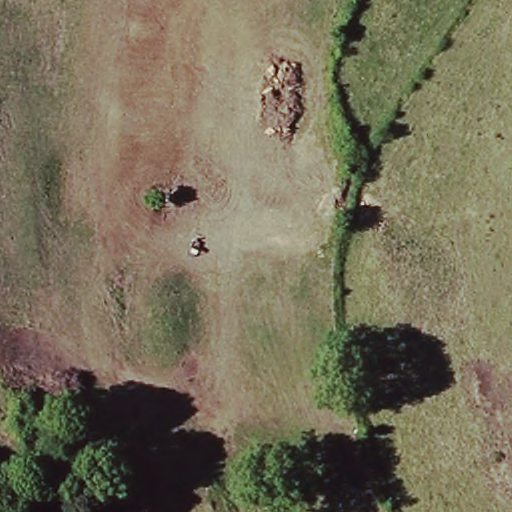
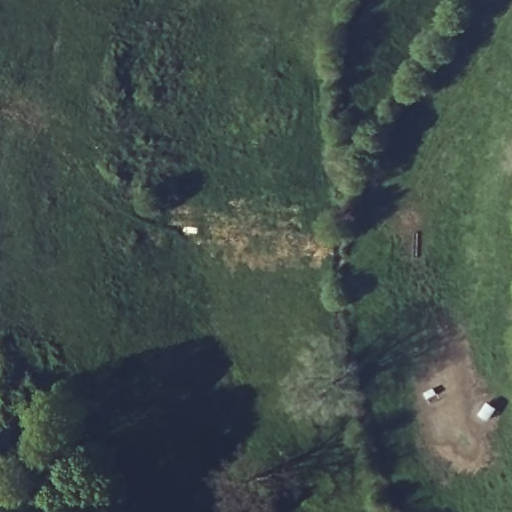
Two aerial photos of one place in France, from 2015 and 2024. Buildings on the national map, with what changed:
[]

